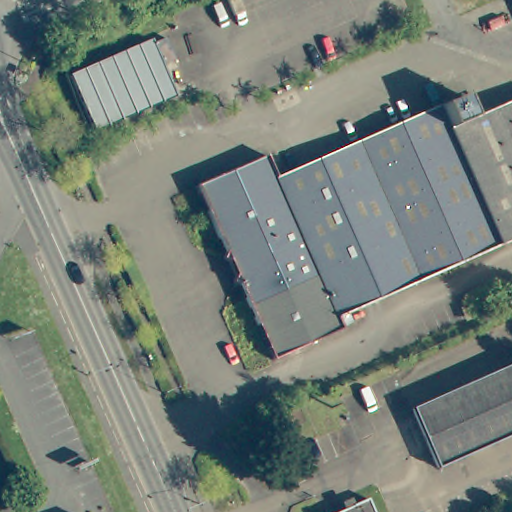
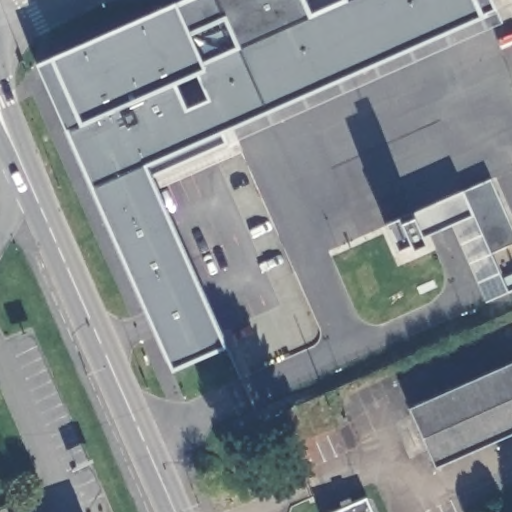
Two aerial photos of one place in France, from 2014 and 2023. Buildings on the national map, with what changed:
new [(500,23),(150,177),(224,346),(172,371),(35,65),(50,59),(175,5),(187,0),(490,0),(500,23)]
demolished [(166,32),(178,65),(169,71),(178,99),(95,134),(73,75),(166,32)]
demolished [(349,324),(270,359),(193,180),(263,150),(273,173),(459,96),(469,119),(512,101),(512,243),(345,314),(349,324)]
new [(512,225),(512,243),(492,253),(509,291),(487,300),(453,223),(421,237),(425,245),(412,251),(410,246),(396,252),(384,225),(397,219),(411,213),(463,191),(492,179),(512,225)]
unchanged [(512,430),(434,464),(407,405),(512,360),(512,430)]
unchanged [(276,409),(273,402),(289,395),(292,402),(296,411),(293,412),(280,418),(276,409)]
unchanged [(335,512),(367,498),(373,512),(335,512)]

